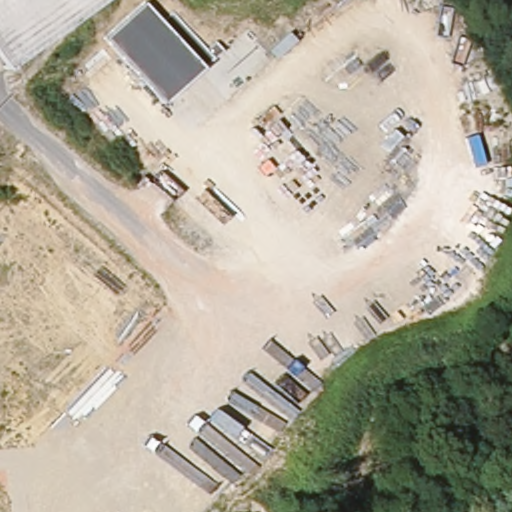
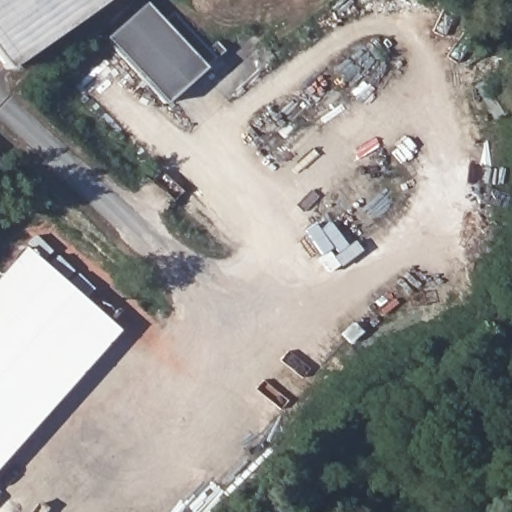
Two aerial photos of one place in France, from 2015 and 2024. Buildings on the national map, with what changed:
unchanged [(0,62),(0,0),(98,0),(4,67),(0,62)]
unchanged [(165,105),(105,39),(145,2),(164,24),(175,15),(206,50),(217,42),(225,50),(203,69),(165,105)]
new [(0,275),(25,247),(117,331),(0,462),(0,275)]

